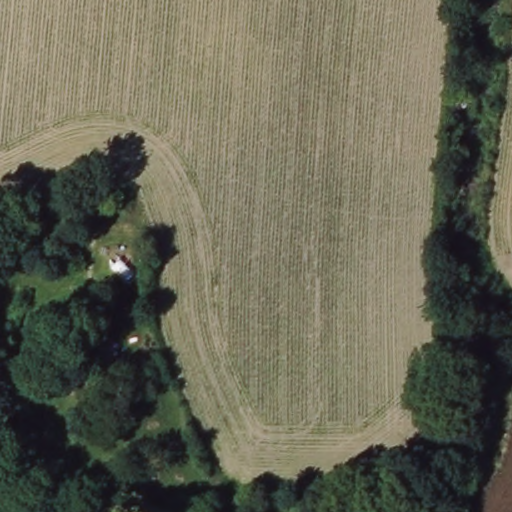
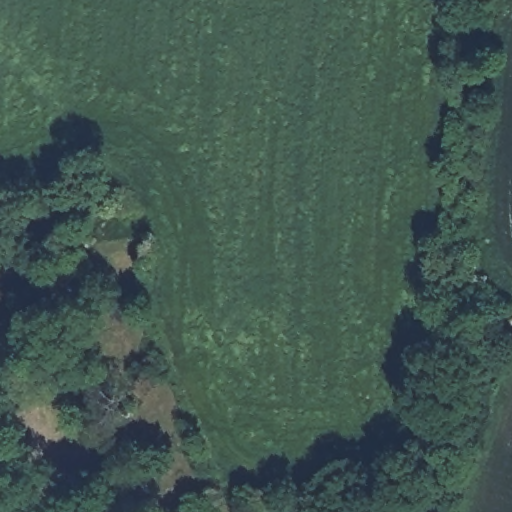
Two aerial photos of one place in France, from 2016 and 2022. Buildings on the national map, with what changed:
unchanged [(3,499),(16,492),(28,512),(11,512),(10,510),(3,499)]

